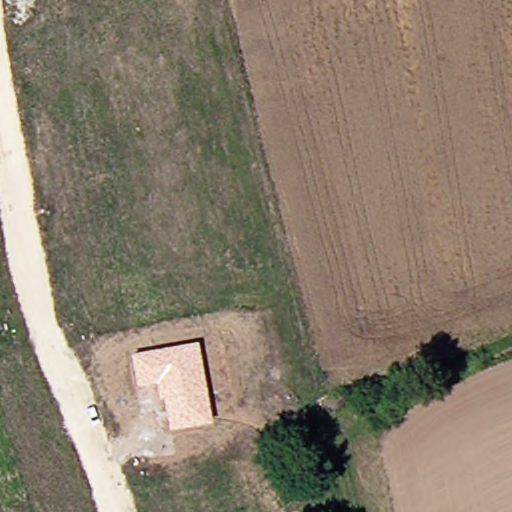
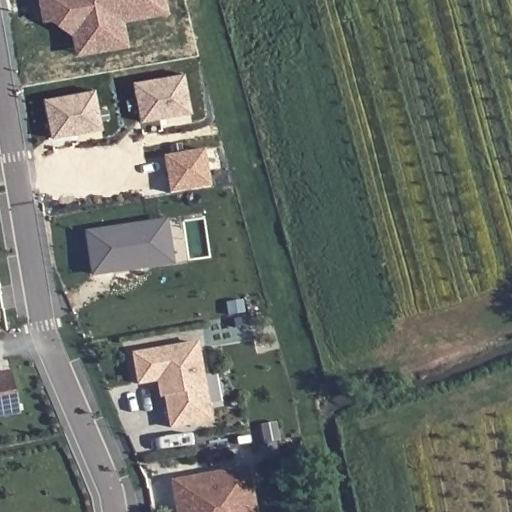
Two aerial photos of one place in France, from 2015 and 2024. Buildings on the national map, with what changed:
new [(119,6),(110,20),(112,34),(89,37),(85,18),(77,19),(65,10),(64,2),(44,5),(43,0),(151,0),(152,1),(119,6)]
new [(65,10),(77,19),(85,18),(89,37),(112,34),(110,20),(119,6),(152,1),(151,0),(164,0),(166,10),(122,19),(126,44),(78,51),(75,32),(53,17),(46,18),(44,5),(64,2),(65,10)]
new [(190,114),(139,122),(132,82),(183,74),(190,114)]
new [(50,139),(44,100),(95,91),(102,130),(50,139)]
new [(211,188),(170,195),(165,156),(205,150),(211,188)]
new [(169,222),(174,263),(97,275),(90,234),(169,222)]
unchanged [(165,398),(159,400),(156,383),(136,386),(132,355),(197,342),(211,423),(170,430),(165,398)]
new [(10,368),(19,417),(0,420),(0,370),(10,368)]
unchanged [(250,466),(257,512),(175,512),(169,480),(250,466)]

